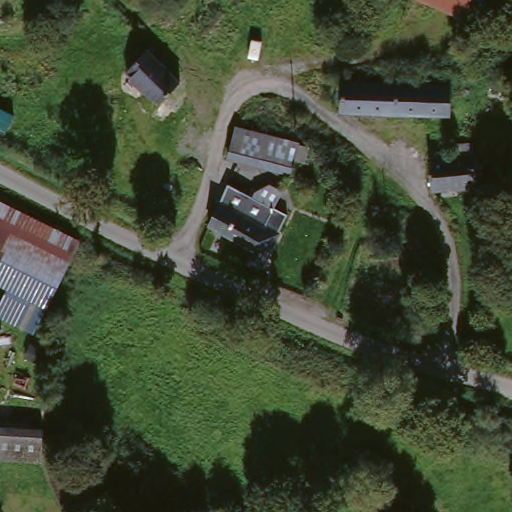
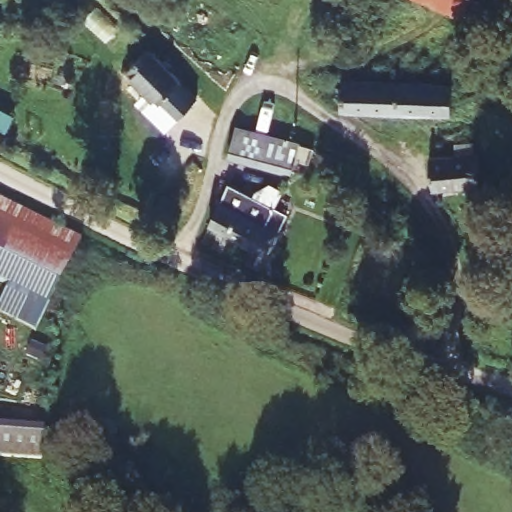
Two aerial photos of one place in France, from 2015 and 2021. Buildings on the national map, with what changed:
unchanged [(433,0),(489,0),(478,22),(446,6),(433,0)]
unchanged [(144,49),(174,81),(183,90),(166,104),(161,97),(152,105),(119,71),(126,65),(126,64),(144,48),(144,49)]
unchanged [(340,110),(341,81),(356,81),(397,84),(396,113),(340,110)]
unchanged [(419,115),(396,113),(397,84),(416,85),(450,86),(449,117),(419,115)]
unchanged [(291,167),(226,160),(232,136),(246,137),(294,141),(291,167)]
unchanged [(460,186),(434,181),(429,155),(480,156),(481,184),(460,186)]
unchanged [(211,220),(220,199),(231,181),(253,193),(270,180),(283,187),(274,205),(287,211),(265,248),(258,261),(241,250),(248,239),(211,220)]
unchanged [(0,285),(0,205),(79,241),(49,307),(8,288),(0,285)]
unchanged [(0,318),(0,306),(8,288),(49,307),(36,335),(0,318)]
unchanged [(0,426),(38,425),(33,450),(0,451),(0,426)]

